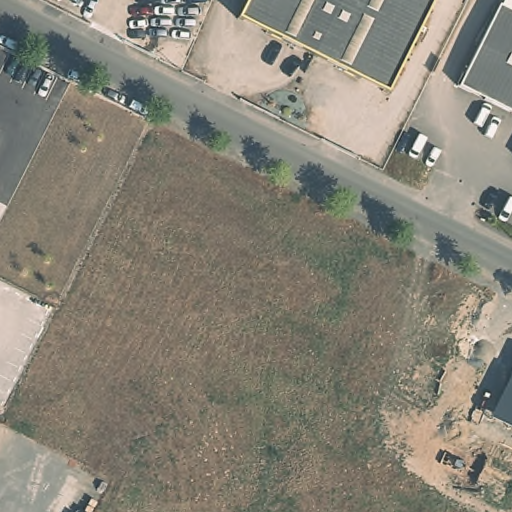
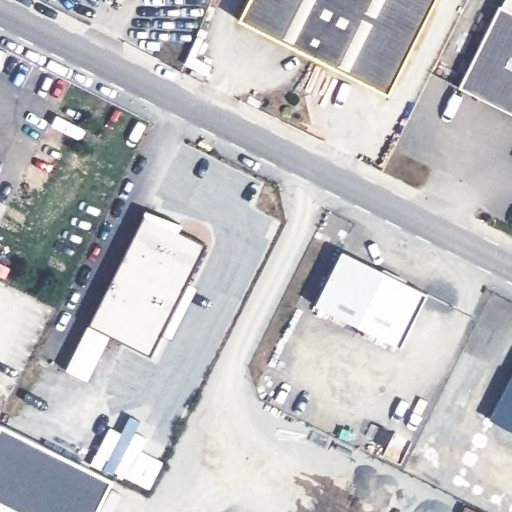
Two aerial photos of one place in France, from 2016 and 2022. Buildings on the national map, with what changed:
unchanged [(392,88),(243,13),(250,0),(437,0),(392,88)]
unchanged [(504,0),(512,4),(512,106),(463,82),(504,0)]
new [(170,339),(161,334),(150,356),(109,335),(87,325),(144,212),(145,210),(181,224),(178,229),(206,244),(187,282),(197,286),(170,339)]
new [(341,250),(426,293),(400,347),(314,304),(341,250)]
new [(87,325),(109,335),(86,380),(65,369),(87,325)]
unchanged [(511,373),(512,371),(512,430),(491,419),(511,373)]

